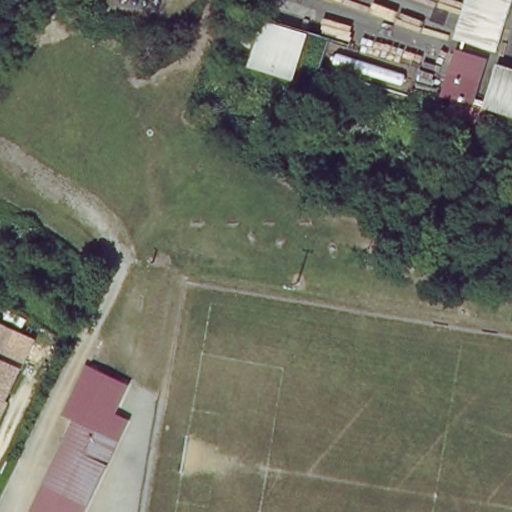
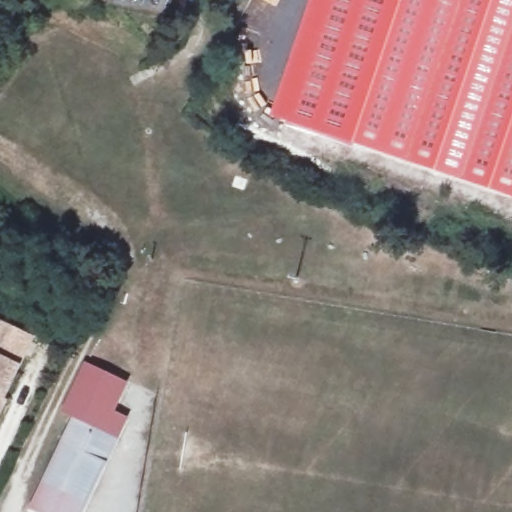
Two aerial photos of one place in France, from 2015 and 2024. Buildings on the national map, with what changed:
new [(282,124),(323,0),(512,0),(512,201),(282,124)]
demolished [(454,38),(467,0),(512,0),(512,8),(498,51),(454,38)]
demolished [(309,37),(295,81),(251,68),(265,24),(309,37)]
demolished [(482,129),(449,118),(453,102),(442,98),(455,54),(485,63),(469,109),(486,114),(482,129)]
demolished [(486,114),(481,111),(494,66),(512,72),(512,122),(486,114)]
unchanged [(88,367),(128,384),(116,410),(133,416),(84,512),(30,512),(77,415),(67,411),(88,367)]

